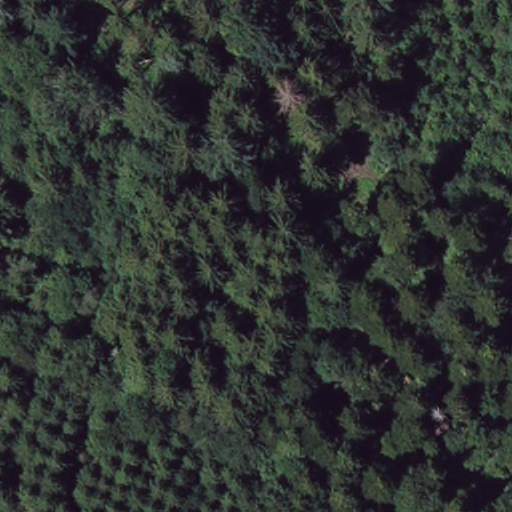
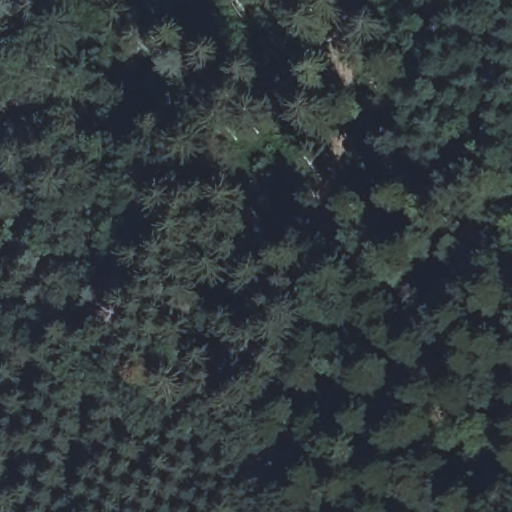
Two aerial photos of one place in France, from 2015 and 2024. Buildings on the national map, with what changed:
[]

